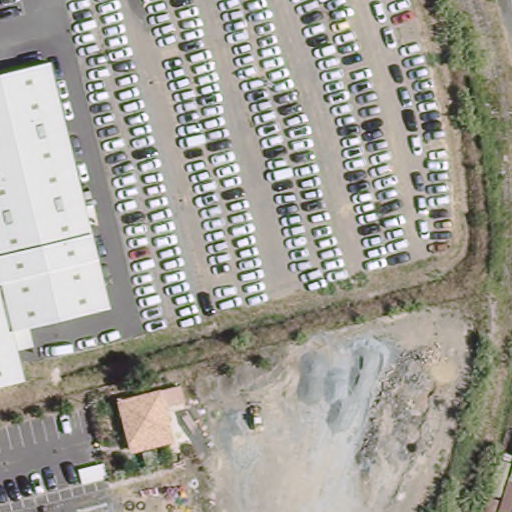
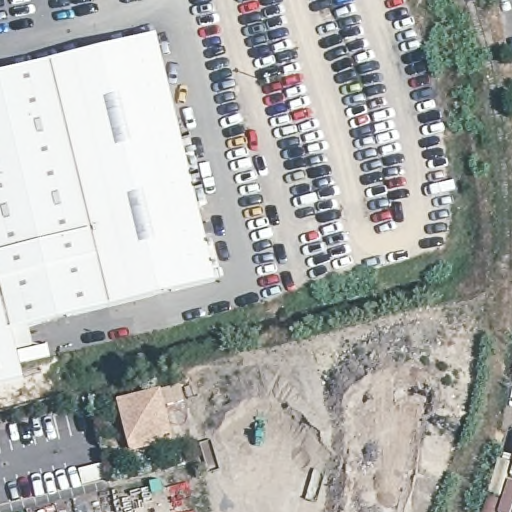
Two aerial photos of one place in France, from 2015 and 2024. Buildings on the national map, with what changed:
new [(217,282),(115,307),(53,60),(157,35),(217,282)]
unchanged [(115,309),(17,332),(27,377),(0,385),(0,71),(52,58),(115,309)]
unchanged [(160,389),(174,436),(130,448),(118,400),(160,389)]

